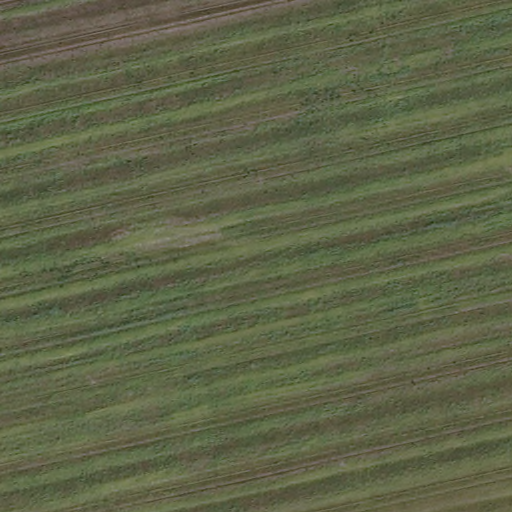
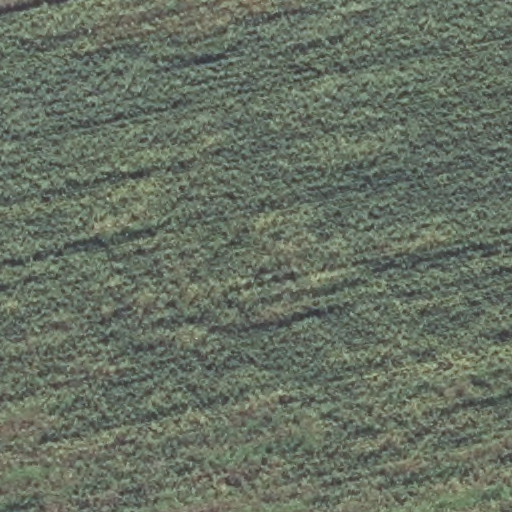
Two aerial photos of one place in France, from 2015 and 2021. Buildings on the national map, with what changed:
[]

